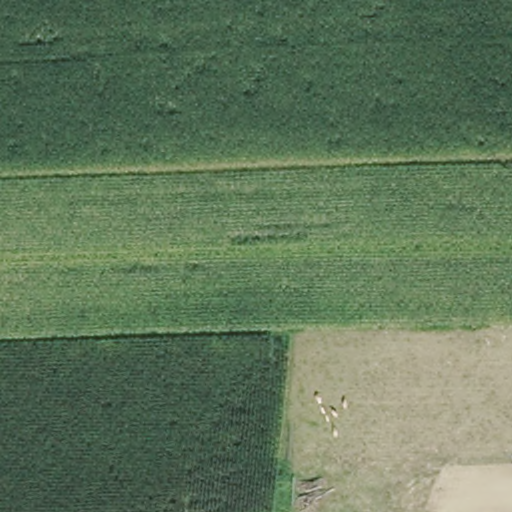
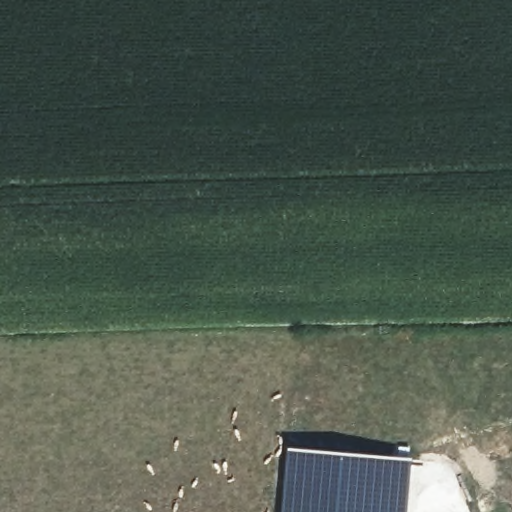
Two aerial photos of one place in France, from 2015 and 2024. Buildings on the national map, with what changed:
new [(409,458),(404,512),(279,512),(285,447),(409,458)]

